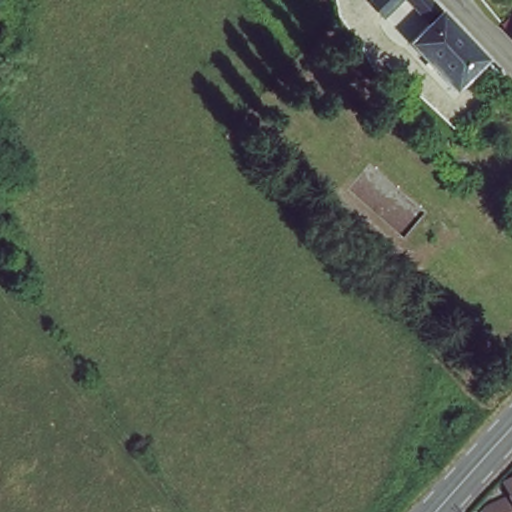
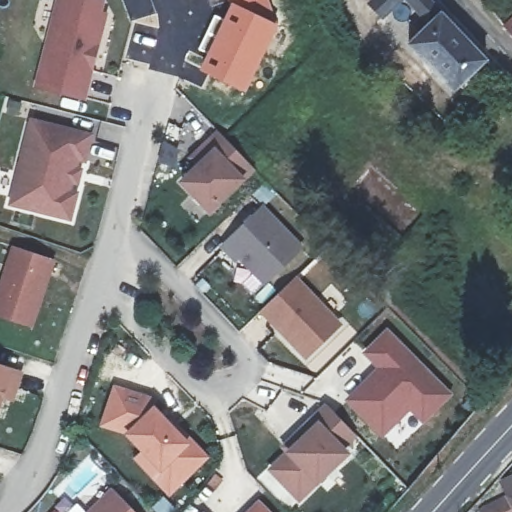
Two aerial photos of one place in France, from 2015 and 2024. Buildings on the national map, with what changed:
new [(105,0),(102,11),(108,12),(85,100),(33,87),(56,0),(105,0)]
new [(276,21),(280,24),(246,94),(198,69),(204,54),(196,50),(213,13),(223,16),(228,5),(226,0),(270,0),(276,19),(276,21)]
unchanged [(407,50),(428,30),(403,3),(382,22),(370,9),(379,0),(406,0),(424,0),(441,17),(484,65),(451,96),(407,50)]
unchanged [(512,32),(512,41),(508,36),(512,32)]
new [(76,187),(70,186),(68,197),(74,199),(68,223),(10,209),(31,126),(90,142),(83,165),(76,164),(73,175),(79,176),(76,187)]
new [(194,160),(208,146),(220,134),(229,141),(255,170),(212,212),(184,185),(202,167),(194,160)]
unchanged [(261,211),(300,250),(264,285),(238,260),(235,263),(222,250),(261,211)]
unchanged [(51,265),(29,330),(0,320),(0,292),(13,252),(51,265)]
new [(296,275),(344,322),(304,360),(259,311),(296,275)]
new [(377,367),(362,352),(387,328),(452,394),(422,423),(409,410),(381,437),(345,399),(377,367)]
unchanged [(0,372),(19,378),(14,394),(10,405),(0,401),(0,372)]
new [(124,436),(102,430),(114,395),(148,405),(146,408),(165,428),(168,425),(203,462),(167,497),(134,463),(143,456),(124,436)]
new [(284,452),(279,446),(324,401),(356,437),(344,446),(349,452),(316,485),(298,501),(266,469),(284,452)]
unchanged [(509,500),(504,488),(512,481),(512,512),(484,512),(509,500)]
unchanged [(111,497),(125,512),(95,512),(111,497)]
new [(258,498),(271,512),(243,512),(258,498)]
new [(203,510),(206,512),(201,512),(203,510)]

